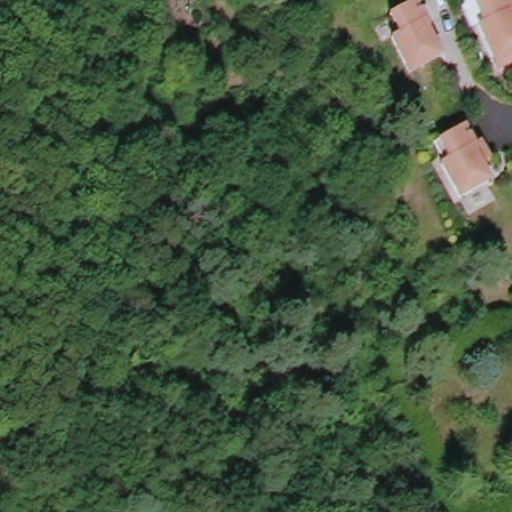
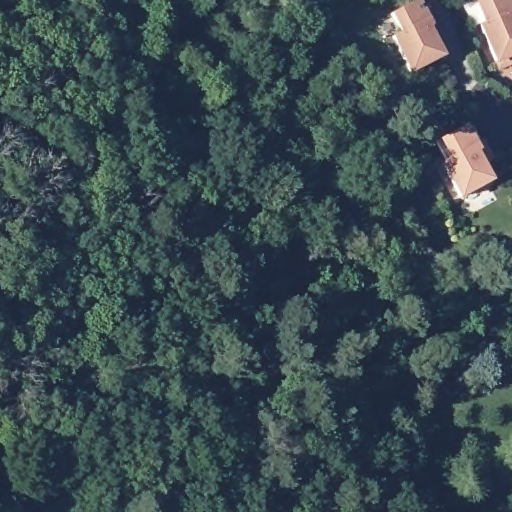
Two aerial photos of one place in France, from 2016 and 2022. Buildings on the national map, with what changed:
unchanged [(431,23),(430,27),(444,54),(414,70),(395,36),(403,31),(393,13),(417,0),(418,0),(431,23)]
unchanged [(512,7),(511,9),(512,12),(512,62),(501,66),(482,22),(487,20),(478,0),(512,0),(512,7)]
unchanged [(480,167),(490,183),(460,200),(442,167),(449,162),(438,144),(463,130),(468,126),(482,149),(489,162),(480,167)]

